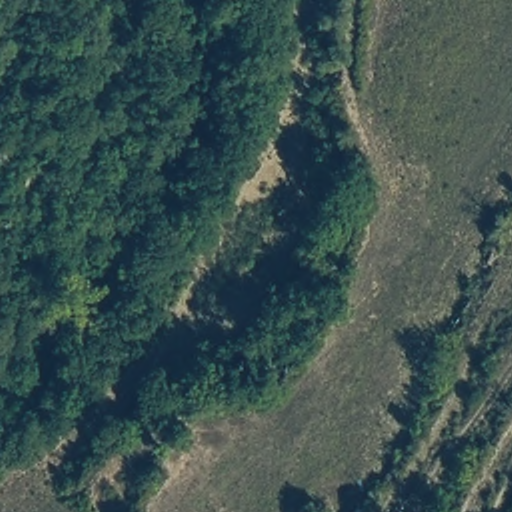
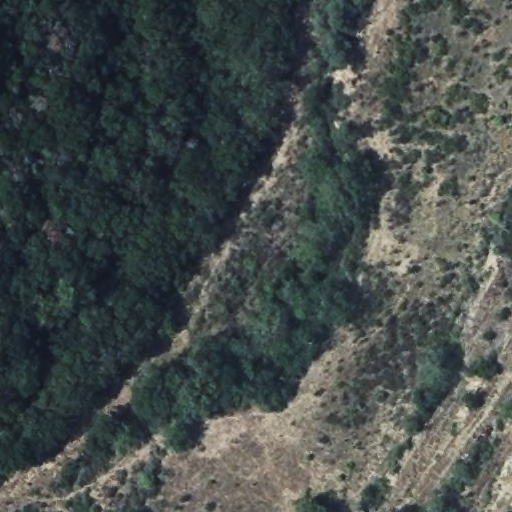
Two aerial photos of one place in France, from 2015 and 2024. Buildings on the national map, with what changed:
unchanged [(356,505),(363,512),(351,512),(356,505)]

